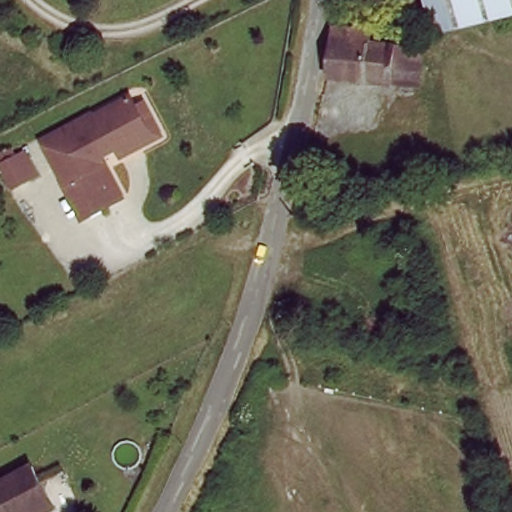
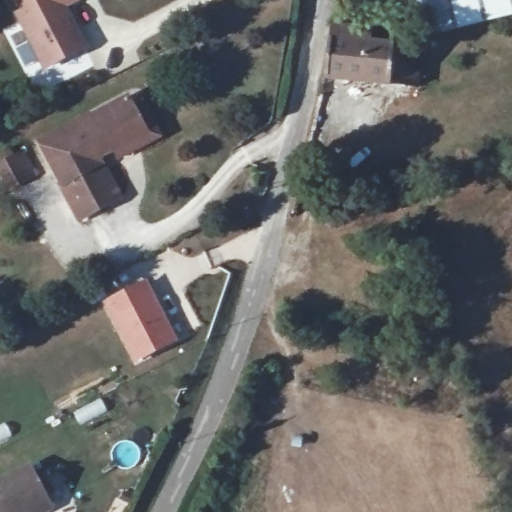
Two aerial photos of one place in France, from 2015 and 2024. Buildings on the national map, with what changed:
new [(89,48),(43,71),(8,0),(83,0),(68,8),(89,48)]
unchanged [(432,36),(423,0),(512,0),(512,18),(432,36)]
unchanged [(389,82),(322,74),(323,71),(328,24),(367,29),(366,40),(390,41),(389,82)]
unchanged [(416,42),(415,85),(389,82),(390,41),(416,42)]
unchanged [(117,201),(78,218),(62,182),(60,183),(40,138),(92,115),(93,117),(132,100),(137,111),(147,107),(162,142),(120,160),(117,151),(98,159),(117,201)]
unchanged [(0,155),(14,149),(22,145),(33,171),(25,175),(7,182),(0,165),(0,155)]
new [(145,276),(178,341),(133,365),(100,301),(145,276)]
new [(100,396),(107,411),(79,425),(72,411),(100,396)]
unchanged [(0,512),(0,474),(28,462),(42,499),(45,507),(35,512),(0,512)]

